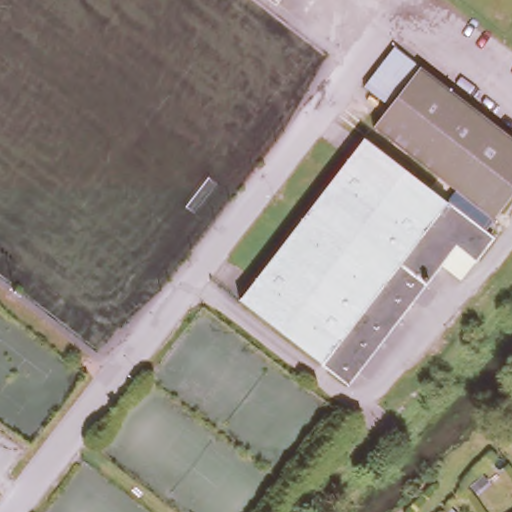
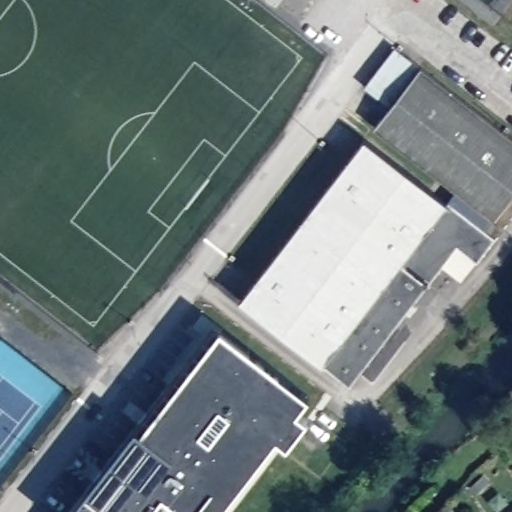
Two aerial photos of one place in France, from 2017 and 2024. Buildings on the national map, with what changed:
unchanged [(389,54),(412,71),(383,109),(359,92),(389,54)]
unchanged [(416,73),(512,147),(512,194),(489,224),(449,194),(368,134),(416,73)]
unchanged [(440,207),(359,144),(368,134),(449,194),(440,207)]
unchanged [(234,304),(359,144),(440,207),(488,244),(469,266),(455,284),(437,269),(343,391),(234,304)]
new [(293,419),(303,427),(285,451),(273,444),(223,510),(223,512),(80,512),(217,335),(305,404),(293,419)]

